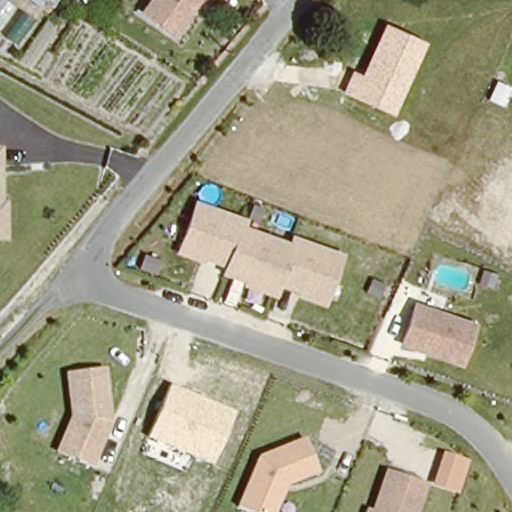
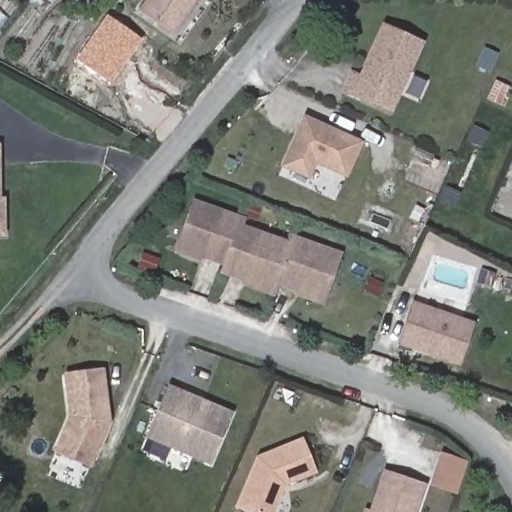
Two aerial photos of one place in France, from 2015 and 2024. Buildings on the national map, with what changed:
new [(38,0),(55,0),(50,7),(38,0)]
unchanged [(143,13),(152,0),(199,0),(177,35),(143,13)]
new [(142,40),(112,85),(76,60),(106,15),(142,40)]
unchanged [(392,117),(338,94),(348,71),(359,76),(382,22),(424,42),(392,117)]
new [(304,115),(364,142),(349,177),(317,165),(310,180),(281,167),(304,115)]
unchanged [(3,199),(5,234),(0,234),(0,199),(3,199)]
unchanged [(325,305),(278,287),(275,298),(220,274),(223,267),(175,252),(195,200),(249,219),(247,226),(288,241),(292,233),(343,253),(325,305)]
unchanged [(473,328),(460,366),(401,346),(414,308),(473,328)]
unchanged [(112,423),(92,471),(56,455),(70,418),(64,374),(108,369),(112,423)]
unchanged [(208,466),(145,437),(168,385),(232,412),(208,466)]
unchanged [(318,473),(287,487),(278,512),(248,512),(235,507),(256,456),(302,439),(318,473)]
unchanged [(459,497),(429,488),(441,451),(471,462),(459,497)]
unchanged [(384,477),(423,490),(415,512),(372,512),(384,477)]

